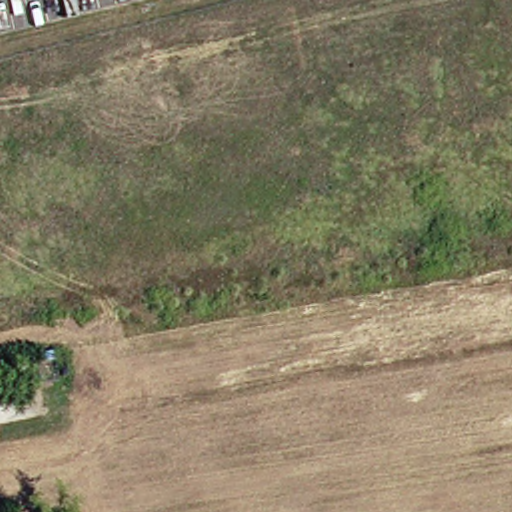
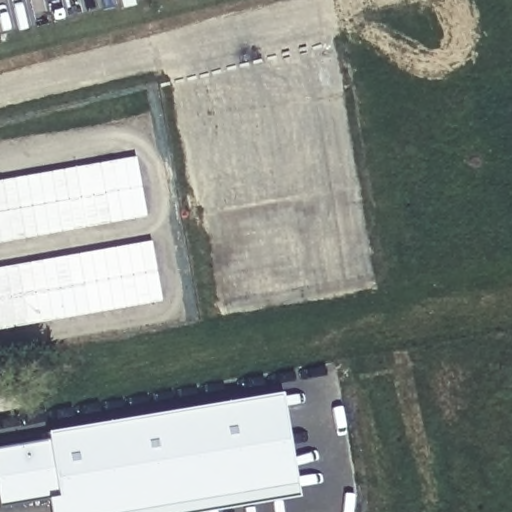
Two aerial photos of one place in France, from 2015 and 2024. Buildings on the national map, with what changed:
new [(133,158),(145,217),(0,243),(0,181),(133,158)]
new [(148,243),(160,302),(0,328),(0,268),(148,243)]
new [(296,498),(212,512),(45,512),(44,500),(0,507),(0,449),(44,443),(42,433),(278,395),(296,498)]

